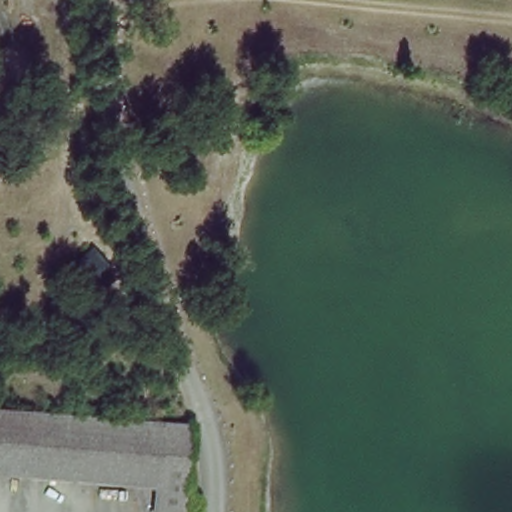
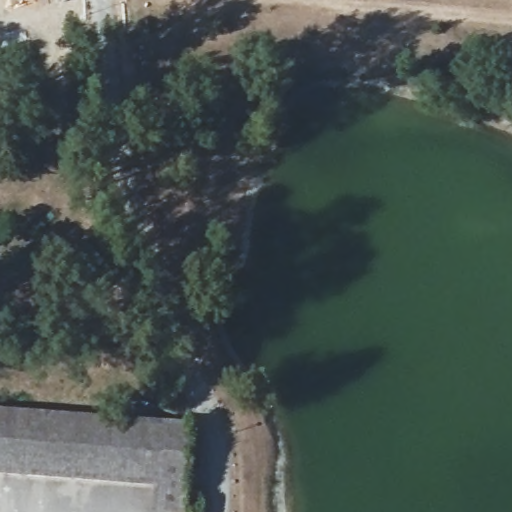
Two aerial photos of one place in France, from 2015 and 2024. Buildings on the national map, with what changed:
unchanged [(197,422),(190,512),(157,512),(158,484),(0,472),(0,408),(197,422)]

